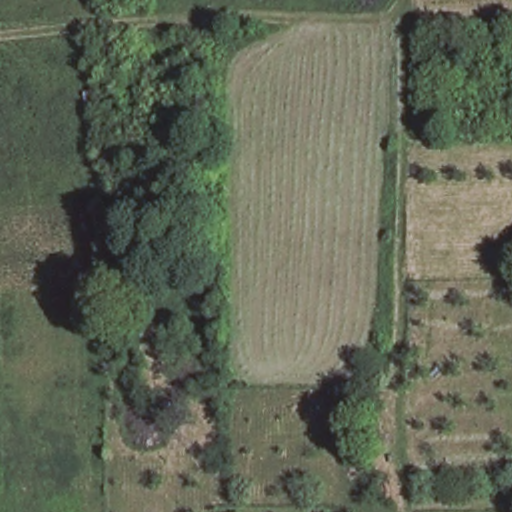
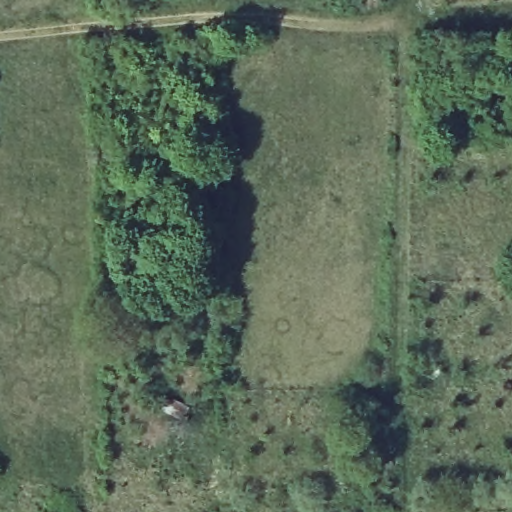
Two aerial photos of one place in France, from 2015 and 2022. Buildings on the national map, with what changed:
unchanged [(427,324),(427,351),(407,348),(409,322),(427,324)]

